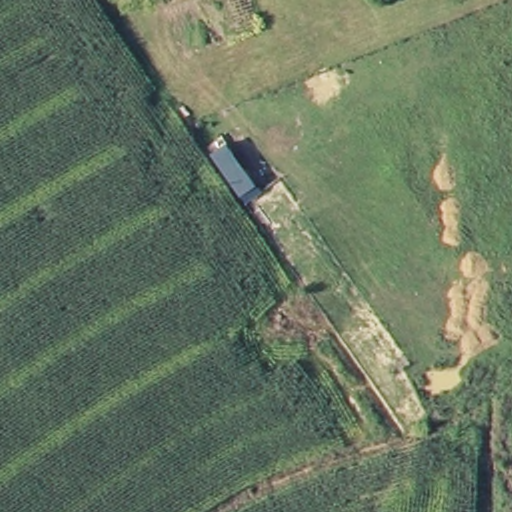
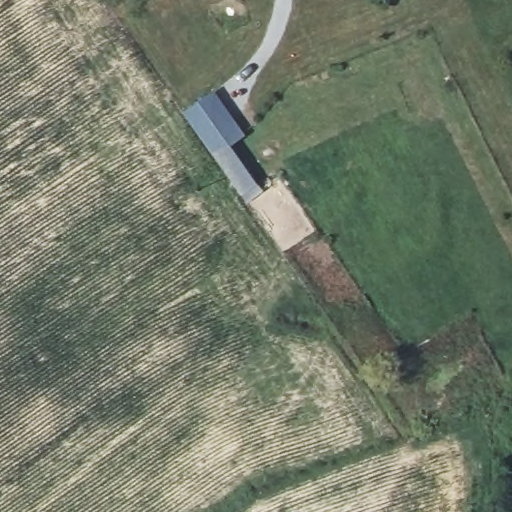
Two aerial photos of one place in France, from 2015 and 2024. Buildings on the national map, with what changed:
new [(246,197),(217,156),(184,111),(212,89),(246,136),(232,146),(261,187),(246,197)]

